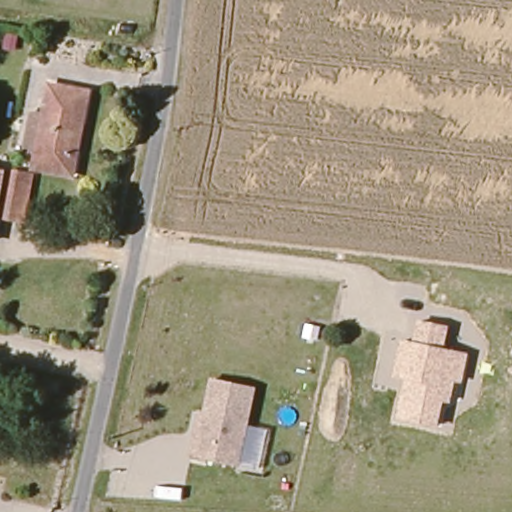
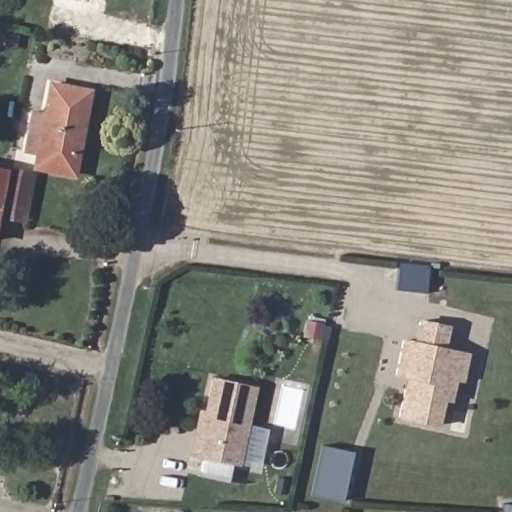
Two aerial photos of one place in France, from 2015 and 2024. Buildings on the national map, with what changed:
unchanged [(93,98),(79,180),(39,172),(55,92),(93,98)]
unchanged [(36,180),(27,229),(3,224),(0,223),(0,173),(36,180)]
unchanged [(3,224),(0,240),(0,223),(3,224)]
new [(406,263),(424,265),(421,293),(402,290),(406,263)]
unchanged [(455,382),(451,403),(444,402),(439,427),(398,419),(405,379),(394,377),(402,339),(415,342),(419,319),(449,325),(445,348),(468,353),(463,383),(455,382)]
unchanged [(239,464),(188,454),(197,405),(202,406),(209,376),(256,384),(239,464)]
new [(355,453),(345,502),(314,495),(324,446),(355,453)]

